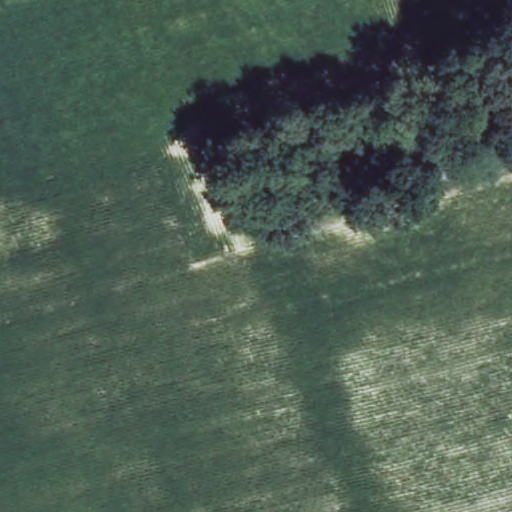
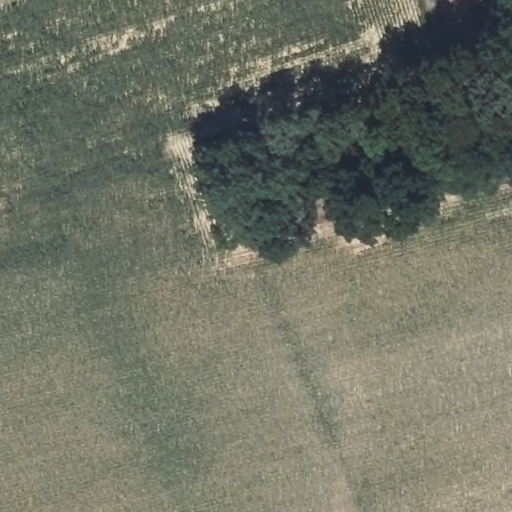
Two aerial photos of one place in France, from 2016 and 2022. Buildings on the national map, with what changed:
[]

